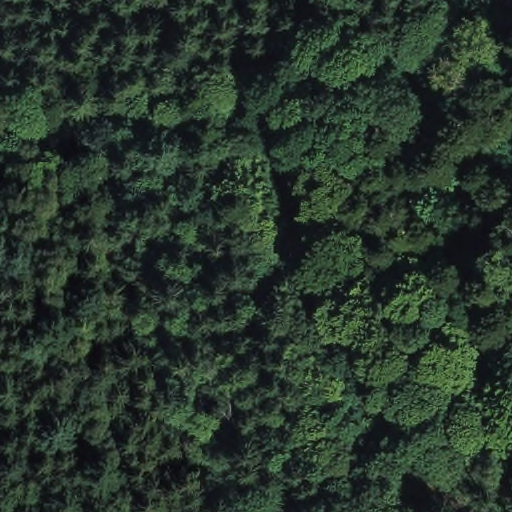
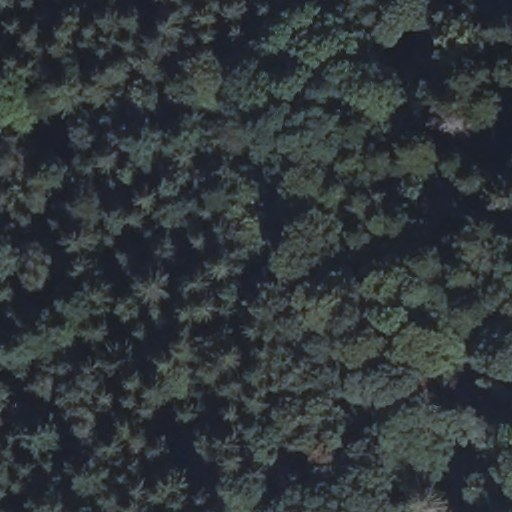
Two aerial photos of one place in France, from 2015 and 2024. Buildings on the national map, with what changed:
[]

